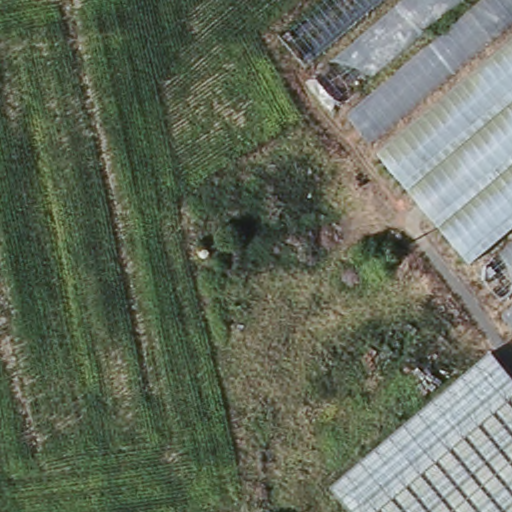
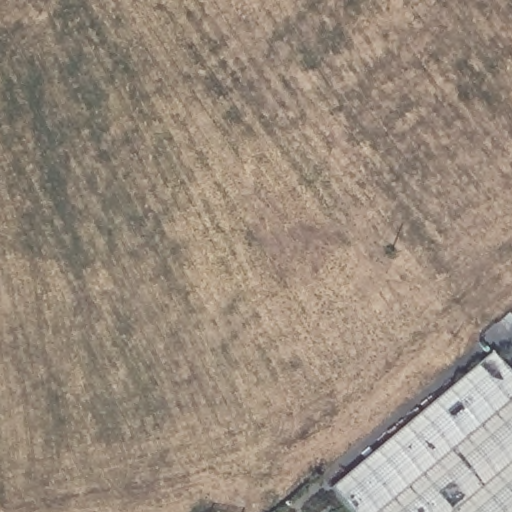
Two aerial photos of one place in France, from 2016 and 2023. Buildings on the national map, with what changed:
demolished [(377,146),(281,35),(322,0),(512,0),(512,37),(377,146)]
demolished [(377,146),(512,37),(512,222),(467,258),(377,146)]
demolished [(512,248),(512,324),(478,276),(512,248)]
unchanged [(487,348),(512,378),(512,474),(465,512),(351,512),(326,482),(487,348)]
unchanged [(465,512),(512,474),(512,512),(465,512)]

